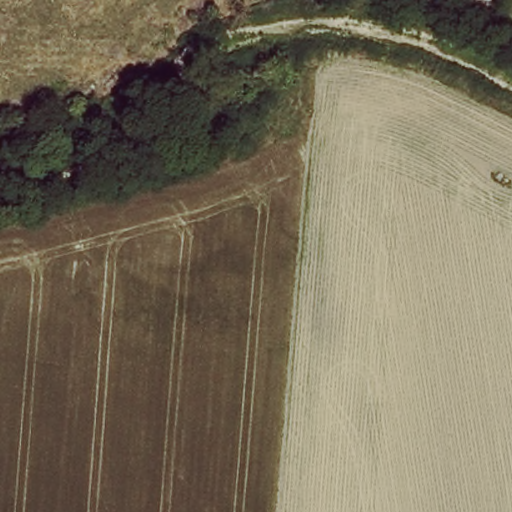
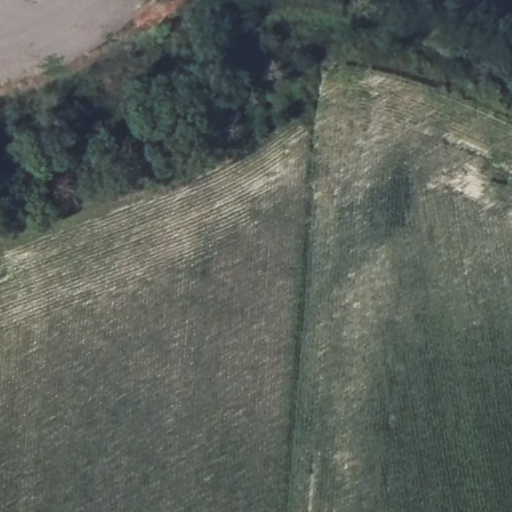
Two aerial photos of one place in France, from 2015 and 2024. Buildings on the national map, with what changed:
unchanged [(419,0),(452,0),(451,10),(434,9),(419,5),(419,0)]

